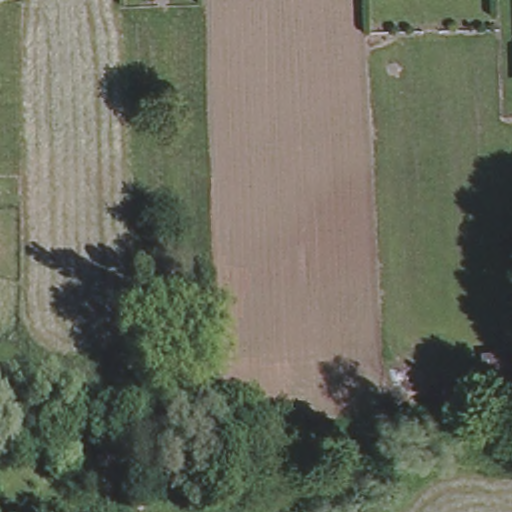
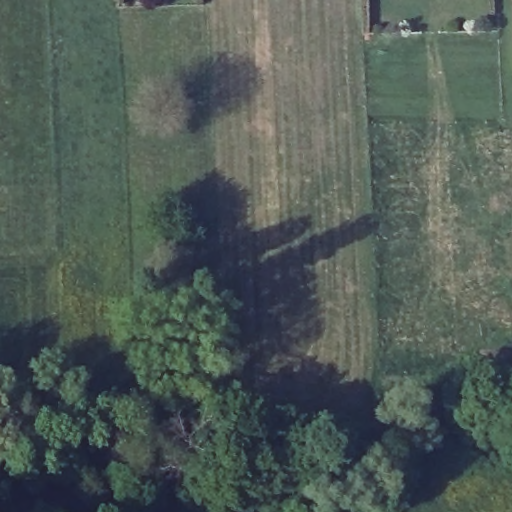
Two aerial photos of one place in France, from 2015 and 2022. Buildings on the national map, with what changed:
[]

